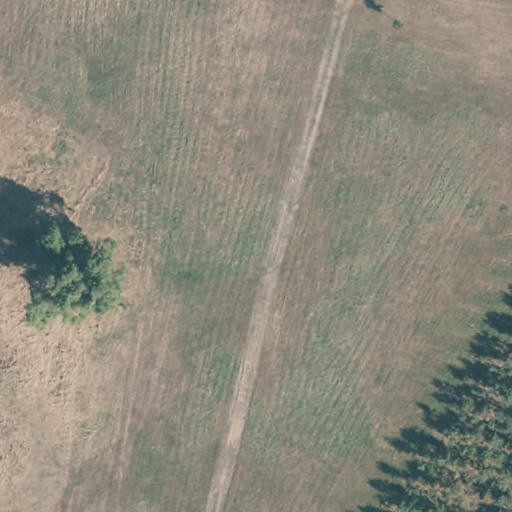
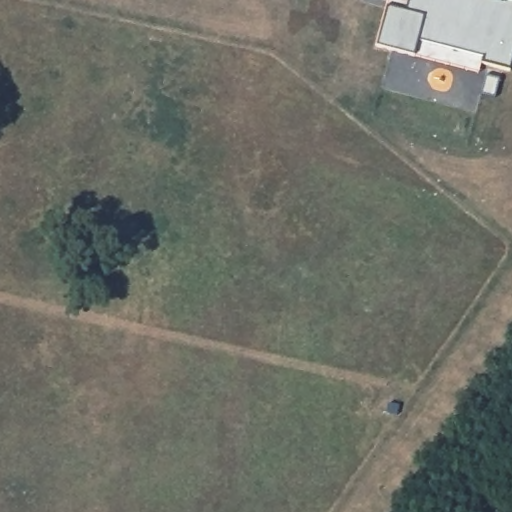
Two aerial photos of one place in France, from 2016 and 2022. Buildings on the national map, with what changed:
new [(494,0),(504,2),(505,0),(512,2),(512,63),(510,71),(481,64),(482,57),(418,41),(415,56),(376,46),(387,6),(389,0),(494,0)]
new [(418,41),(482,57),(481,64),(478,72),(415,56),(418,41)]

